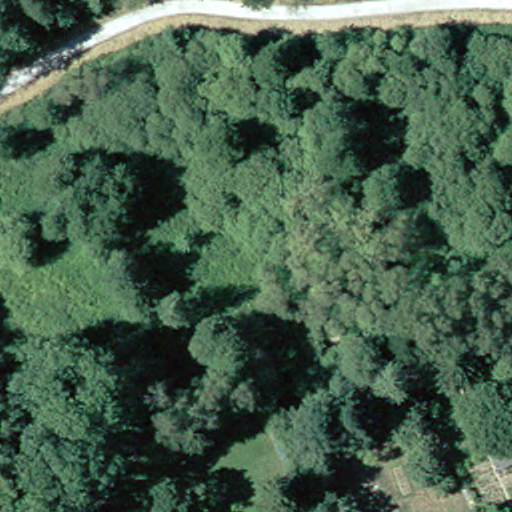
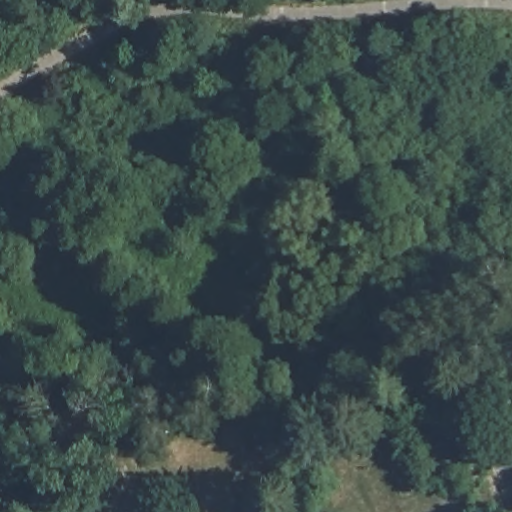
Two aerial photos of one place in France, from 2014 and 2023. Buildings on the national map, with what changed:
unchanged [(480,477),(475,460),(471,451),(500,439),(503,448),(509,465),(480,477)]

